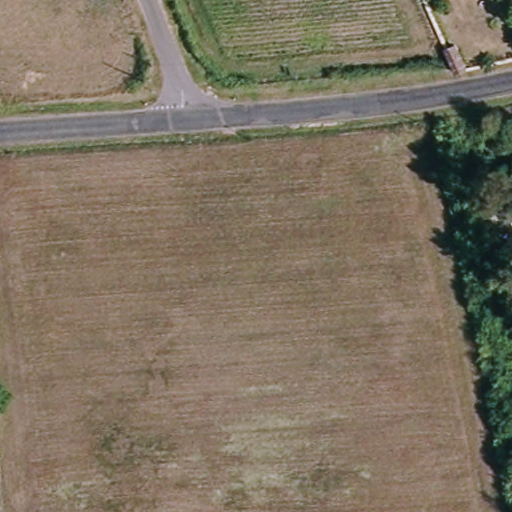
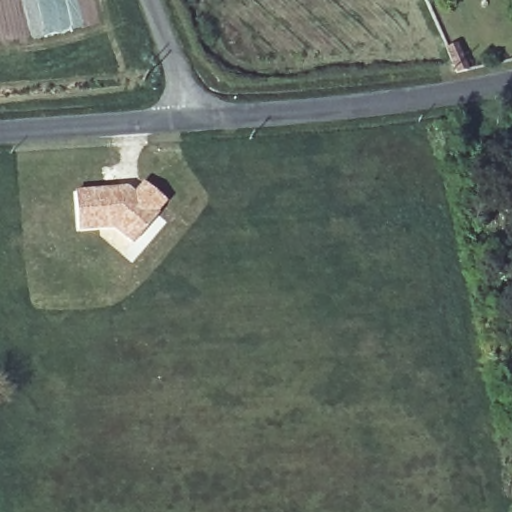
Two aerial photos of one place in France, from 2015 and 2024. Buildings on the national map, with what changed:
unchanged [(451,41),(463,68),(453,70),(445,61),(438,45),(451,41)]
new [(126,191),(130,195),(134,198),(144,186),(164,204),(154,216),(156,218),(132,245),(114,229),(77,232),(75,195),(117,192),(126,191)]

